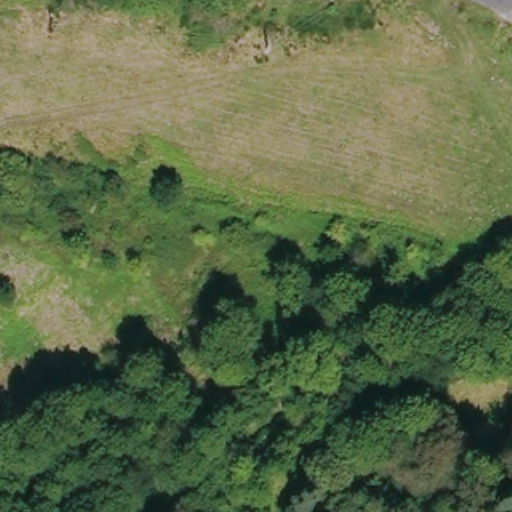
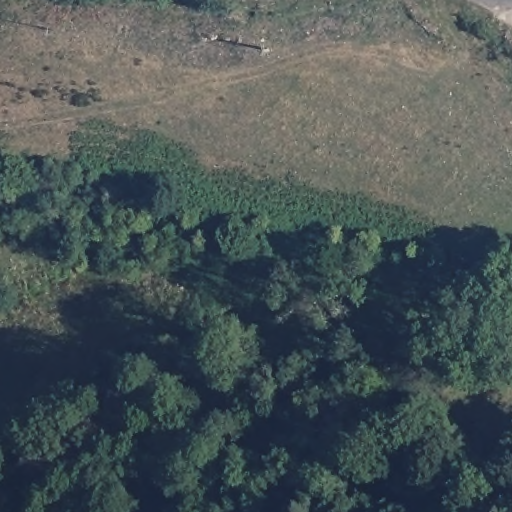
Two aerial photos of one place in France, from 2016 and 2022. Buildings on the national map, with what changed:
[]

